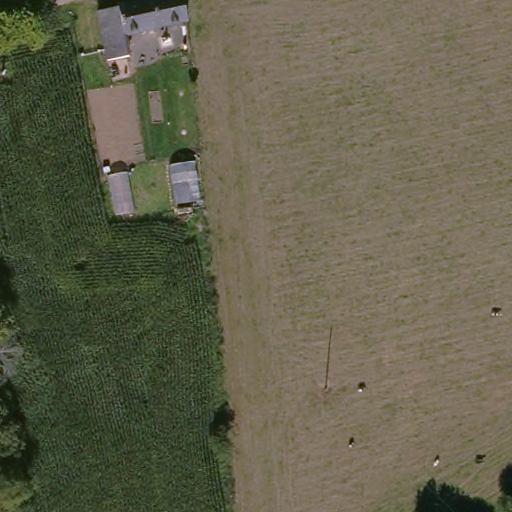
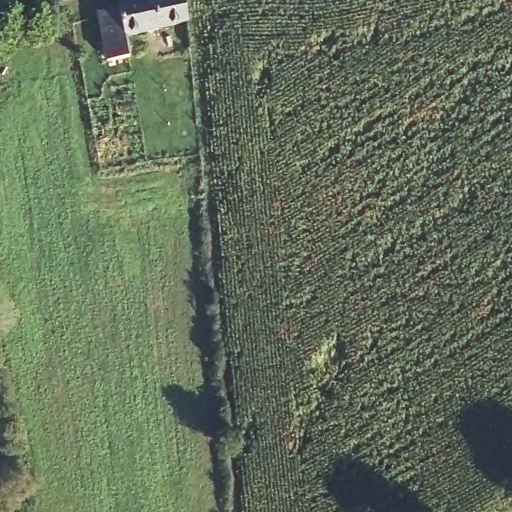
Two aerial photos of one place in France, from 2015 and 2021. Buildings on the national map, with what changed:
unchanged [(179,24),(163,28),(167,49),(117,58),(109,5),(135,0),(175,0),(179,24)]

